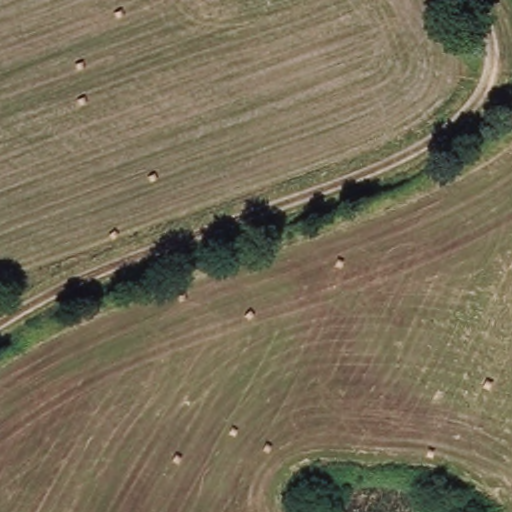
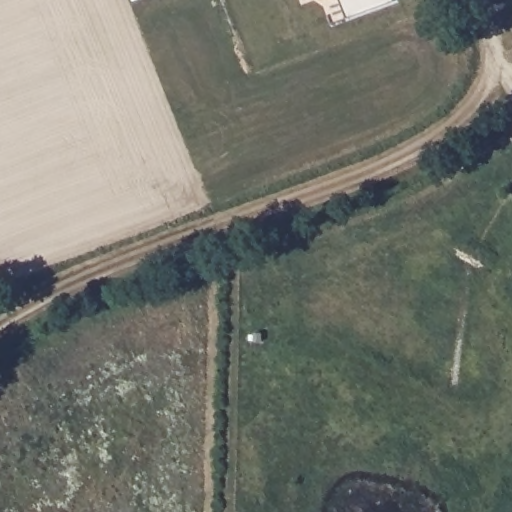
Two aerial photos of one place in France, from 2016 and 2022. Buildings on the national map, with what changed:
new [(346,18),(341,0),(390,0),(346,18)]

